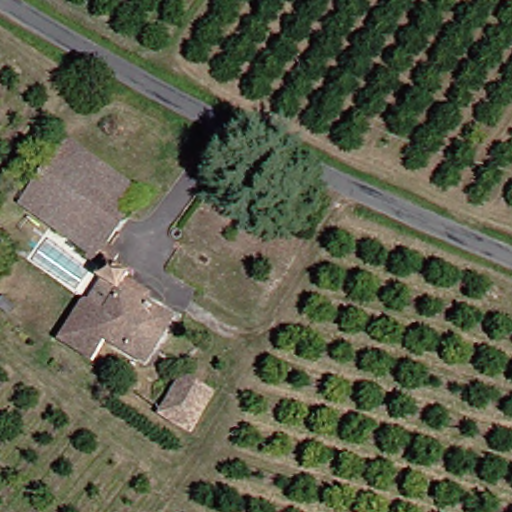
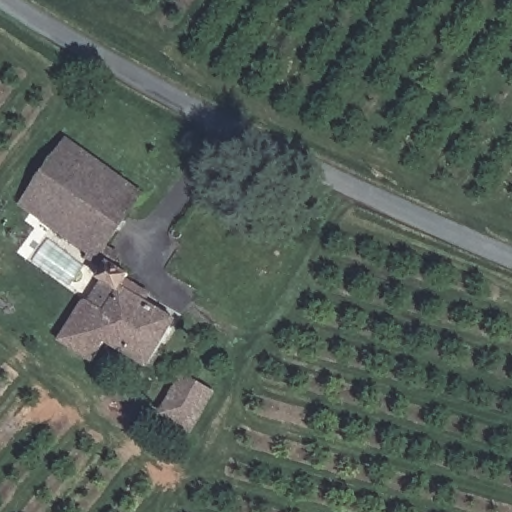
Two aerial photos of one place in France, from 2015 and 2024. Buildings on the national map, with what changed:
unchanged [(149,200),(110,254),(125,262),(117,272),(111,268),(102,262),(21,203),(71,137),(149,200)]
unchanged [(126,291),(176,323),(144,370),(73,326),(86,306),(96,312),(109,291),(101,287),(111,268),(117,272),(133,282),(126,291)]
unchanged [(156,421),(161,412),(186,375),(216,392),(194,433),(184,427),(177,435),(156,421)]

